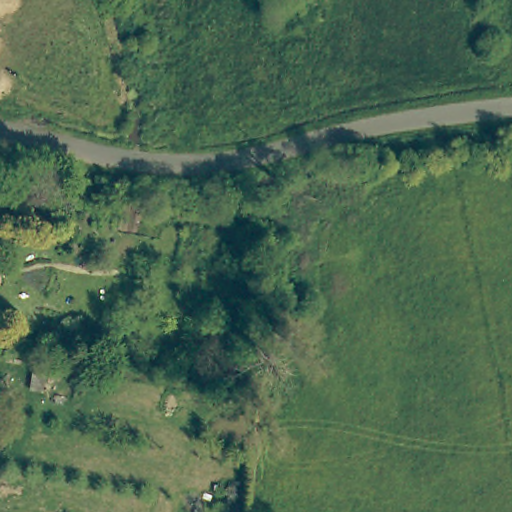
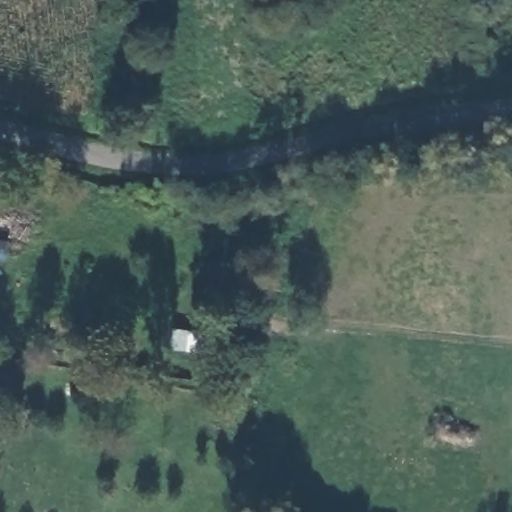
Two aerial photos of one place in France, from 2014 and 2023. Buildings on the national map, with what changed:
[]

